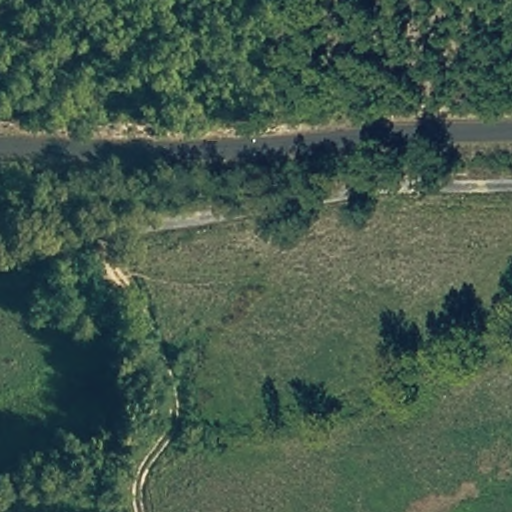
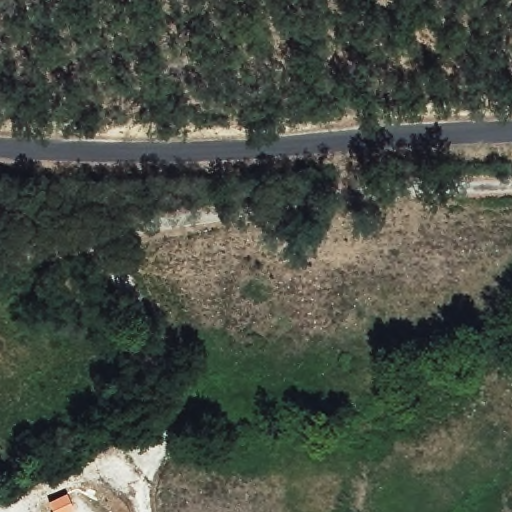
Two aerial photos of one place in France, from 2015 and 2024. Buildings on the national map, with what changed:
new [(67,497),(71,512),(52,512),(50,505),(67,497)]

